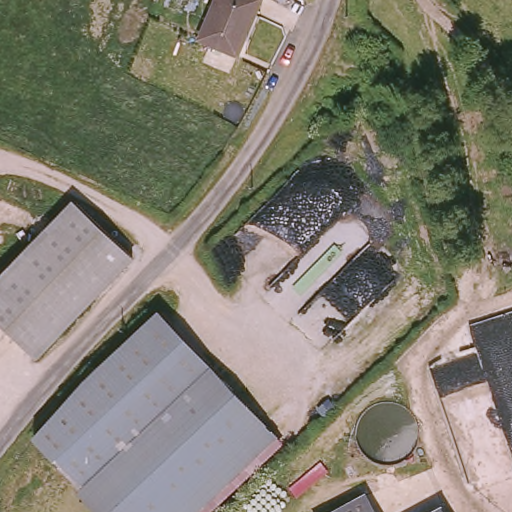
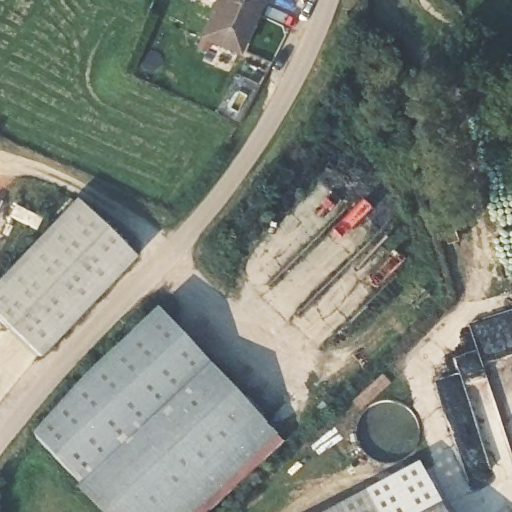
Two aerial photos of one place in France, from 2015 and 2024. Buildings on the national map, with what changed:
unchanged [(239,60),(199,43),(215,0),(249,0),(260,4),(239,60)]
unchanged [(39,359),(0,320),(0,279),(77,199),(136,257),(39,359)]
unchanged [(163,313),(270,447),(194,512),(101,512),(49,447),(77,407),(163,313)]
new [(420,464),(441,505),(429,512),(378,512),(367,493),(420,464)]
unchanged [(367,493),(378,512),(332,512),(367,493)]
unchanged [(441,505),(445,512),(429,512),(441,505)]

